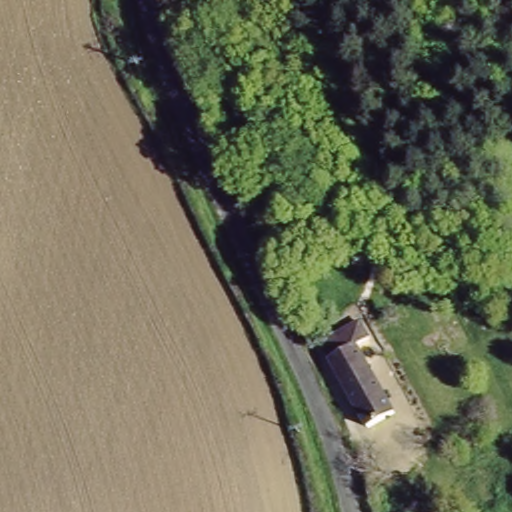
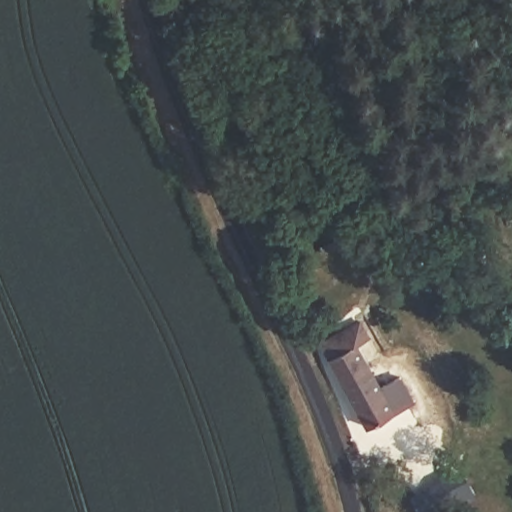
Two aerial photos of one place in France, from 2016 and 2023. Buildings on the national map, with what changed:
unchanged [(367,431),(314,345),(360,320),(372,340),(356,347),(395,415),(367,431)]

